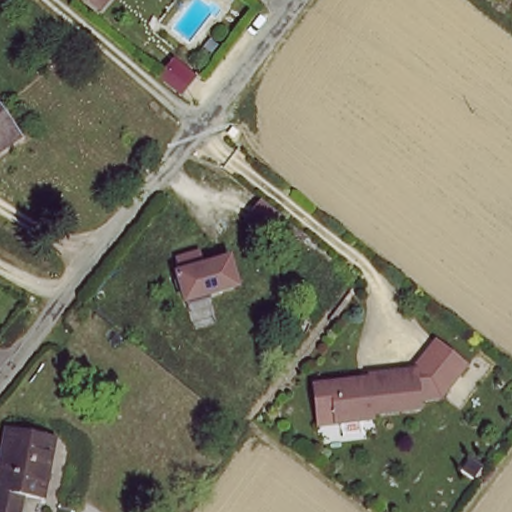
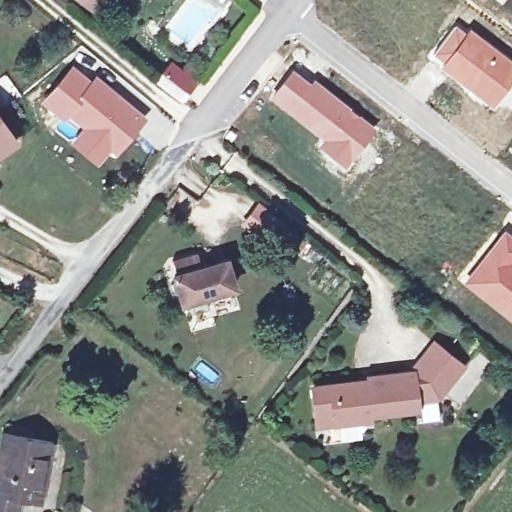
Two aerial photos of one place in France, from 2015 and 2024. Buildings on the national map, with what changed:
unchanged [(101,14),(89,3),(85,0),(111,0),(101,14)]
new [(455,22),(467,30),(470,27),(512,59),(512,79),(491,106),(439,66),(441,63),(431,55),(455,22)]
new [(172,59),(200,80),(180,103),(153,81),(172,59)]
new [(72,63),(91,79),(96,73),(147,116),(112,156),(106,152),(96,165),(71,144),(82,129),(68,117),(65,121),(41,102),(72,63)]
new [(292,67),(310,81),(314,77),(375,125),(344,166),(317,145),(322,140),(270,98),(292,67)]
unchanged [(0,150),(0,120),(15,140),(0,150)]
unchanged [(286,223),(268,246),(248,230),(266,207),(286,223)]
new [(504,229),(512,235),(512,322),(463,283),(504,229)]
unchanged [(195,254),(200,269),(225,260),(234,287),(207,296),(209,301),(185,309),(170,262),(195,254)]
unchanged [(415,393),(416,403),(367,407),(367,412),(334,416),(333,403),(315,405),(313,380),(370,373),(370,371),(411,367),(422,350),(432,335),(462,356),(452,370),(439,388),(415,393)]
unchanged [(55,437),(44,503),(24,500),(15,498),(13,508),(0,506),(0,455),(5,430),(55,437)]
unchanged [(0,512),(0,506),(13,508),(15,498),(24,500),(22,512),(0,512)]

